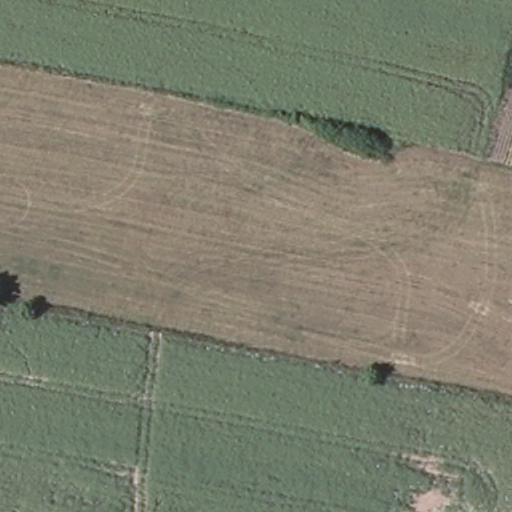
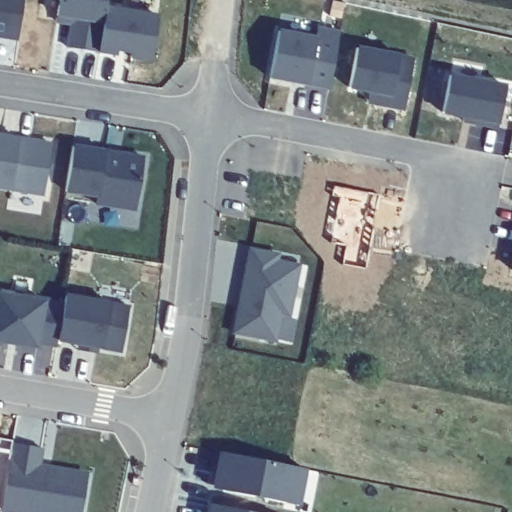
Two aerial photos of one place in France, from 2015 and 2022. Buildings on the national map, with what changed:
new [(0,39),(0,0),(25,0),(18,42),(0,39)]
new [(159,18),(152,61),(70,50),(74,20),(58,18),(60,0),(109,0),(107,10),(159,18)]
new [(270,77),(278,34),(317,42),(319,29),(339,34),(329,89),(270,77)]
new [(414,62),(406,112),(373,105),(375,95),(350,90),(356,50),(414,62)]
new [(508,75),(498,130),(479,126),(480,122),(444,115),(452,65),(508,75)]
new [(31,139),(53,142),(45,192),(0,185),(0,134),(20,137),(31,139)]
new [(73,150),(144,161),(137,211),(96,206),(97,198),(66,194),(73,150)]
new [(250,253),(279,259),(278,265),(300,269),(291,320),(282,318),(278,345),(235,337),(250,253)]
new [(102,350),(99,350),(97,355),(77,350),(79,345),(57,342),(56,350),(38,345),(37,351),(0,343),(0,292),(47,300),(64,305),(66,295),(111,304),(129,308),(121,355),(102,350)]
new [(12,443),(45,449),(42,465),(88,473),(80,512),(1,512),(12,443)]
new [(300,505),(213,488),(220,454),(307,470),(300,505)]
new [(207,506),(240,512),(206,512),(207,506)]

